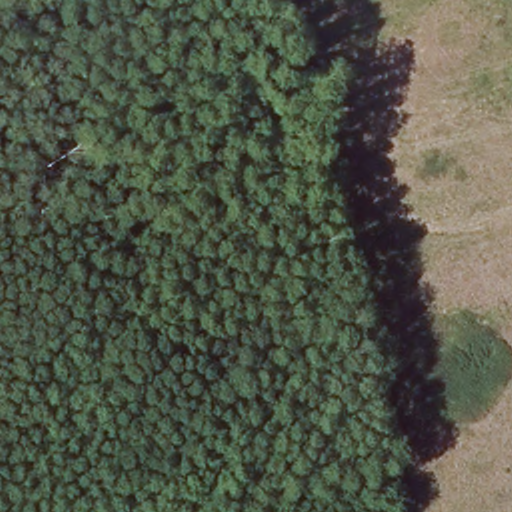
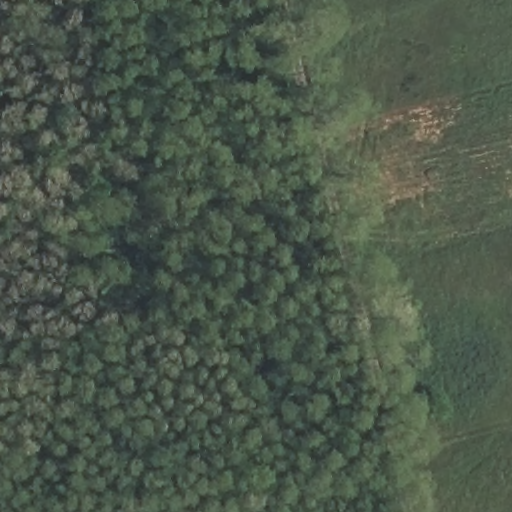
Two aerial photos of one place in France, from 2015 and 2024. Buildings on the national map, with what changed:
[]

